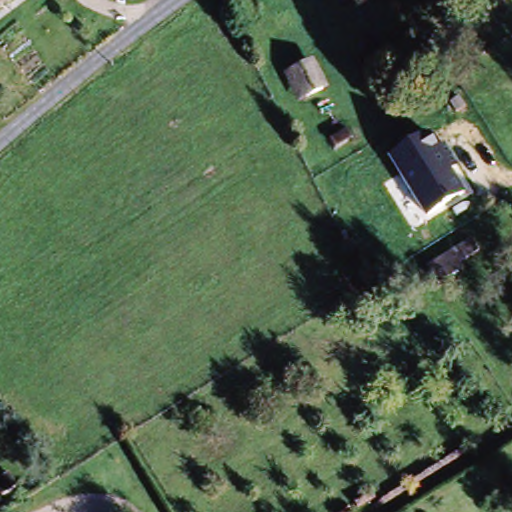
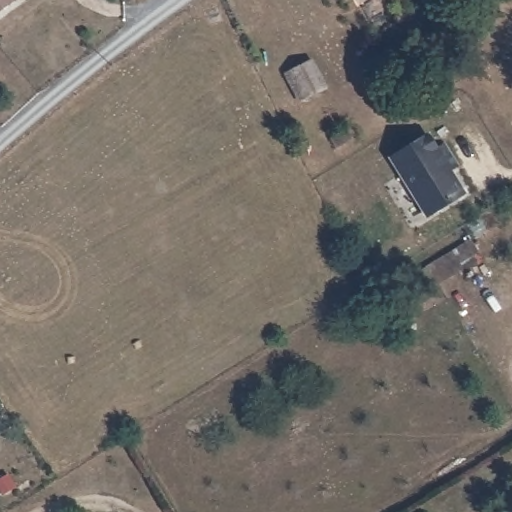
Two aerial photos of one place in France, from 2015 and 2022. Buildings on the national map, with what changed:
unchanged [(0,0),(22,0),(0,13),(0,0)]
unchanged [(352,0),(365,0),(355,5),(352,0)]
unchanged [(317,64),(335,97),(314,111),(297,76),(317,64)]
unchanged [(387,156),(429,131),(440,147),(446,144),(458,165),(452,167),(466,193),(426,217),(387,156)]
unchanged [(494,256),(472,269),(477,276),(456,288),(445,271),(488,245),(494,256)]

